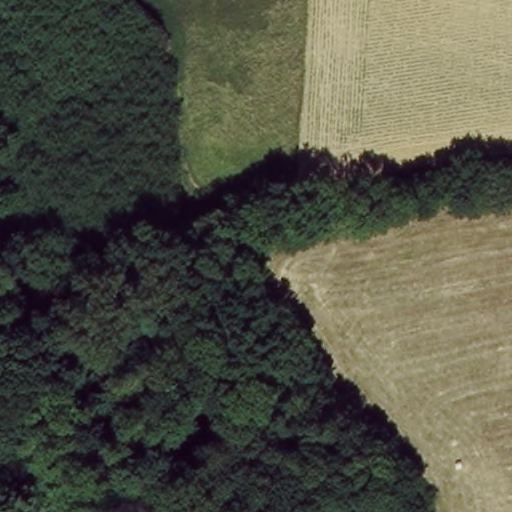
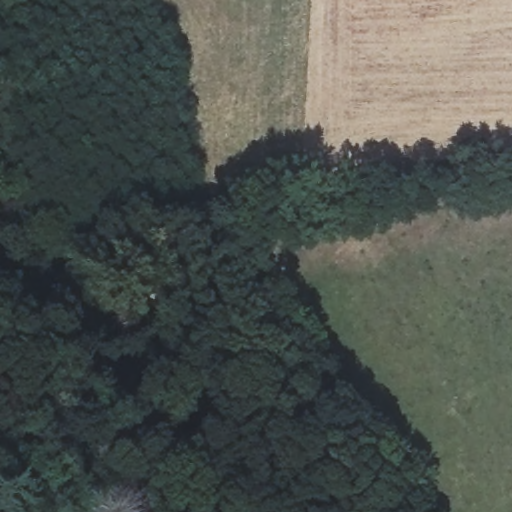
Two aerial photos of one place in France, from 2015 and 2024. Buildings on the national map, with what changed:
[]

